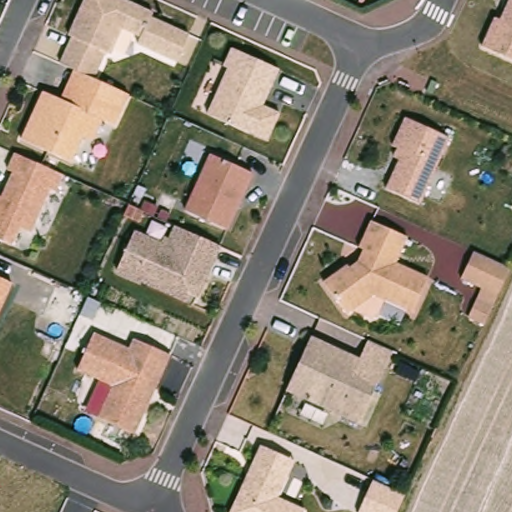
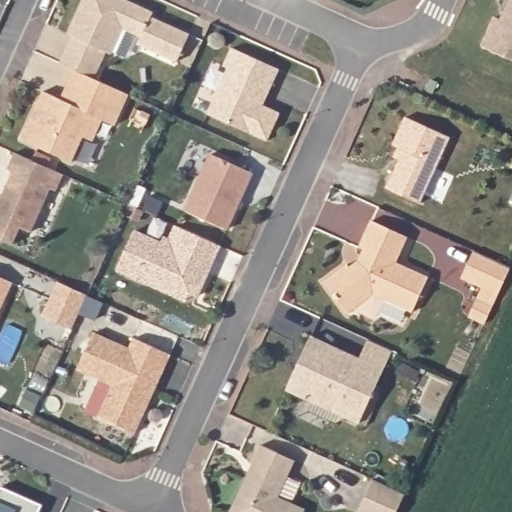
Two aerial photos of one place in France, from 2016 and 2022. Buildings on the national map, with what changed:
unchanged [(73,69),(59,62),(72,35),(67,32),(83,0),(130,0),(156,12),(153,16),(195,35),(183,61),(138,40),(140,35),(121,26),(111,49),(106,47),(93,76),(129,90),(115,125),(103,119),(94,140),(84,135),(72,161),(20,136),(43,86),(60,97),(73,69)]
unchanged [(497,19),(506,0),(512,0),(512,61),(479,48),(493,17),(497,19)]
unchanged [(283,115),(270,142),(210,115),(231,69),(226,66),(235,49),(282,70),(274,88),(266,106),(283,115)]
unchanged [(452,135),(421,205),(385,190),(399,155),(394,151),(397,145),(392,142),(405,115),(452,135)]
unchanged [(65,172),(58,189),(50,185),(31,231),(22,226),(13,245),(0,239),(0,194),(2,195),(11,171),(6,169),(14,150),(65,172)]
unchanged [(256,174),(230,231),(188,212),(214,155),(256,174)]
unchanged [(349,261),(352,266),(360,260),(363,248),(358,245),(369,219),(410,236),(399,261),(430,275),(416,310),(378,295),(369,312),(357,306),(345,311),(322,277),(349,261)]
unchanged [(221,244),(197,297),(190,293),(186,301),(117,270),(136,227),(163,238),(166,234),(171,236),(176,224),(221,244)]
unchanged [(512,267),(487,325),(468,316),(481,285),(459,274),(472,247),(512,267)]
unchanged [(12,281),(0,307),(0,275),(12,281)]
new [(59,284),(89,297),(74,332),(44,318),(59,284)]
unchanged [(131,346),(135,336),(171,351),(138,432),(100,415),(113,385),(76,367),(94,328),(131,346)]
unchanged [(361,356),(355,372),(378,384),(360,423),(285,387),(311,333),(361,356)]
unchanged [(296,460),(278,496),(304,506),(302,512),(226,512),(260,443),(296,460)]
unchanged [(406,493),(397,512),(356,512),(372,478),(406,493)]
new [(1,490),(42,508),(41,512),(0,512),(0,493),(1,490)]

